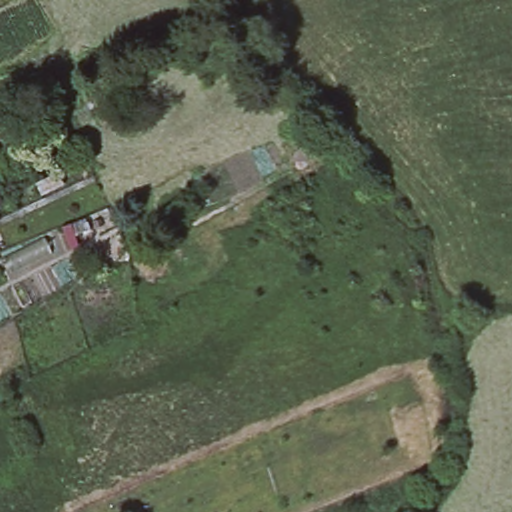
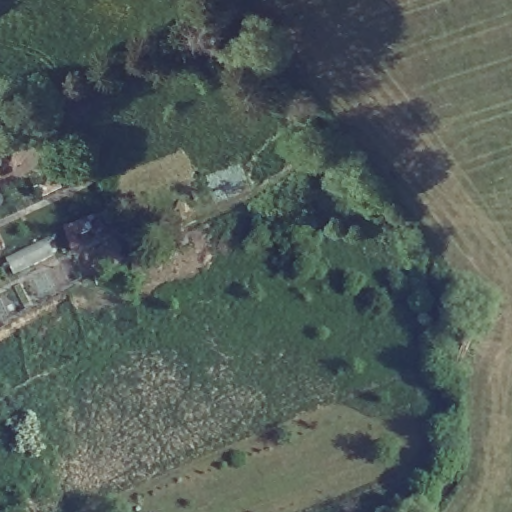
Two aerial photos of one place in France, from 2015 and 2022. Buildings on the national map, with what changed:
unchanged [(65,182),(43,193),(38,183),(60,173),(65,182)]

